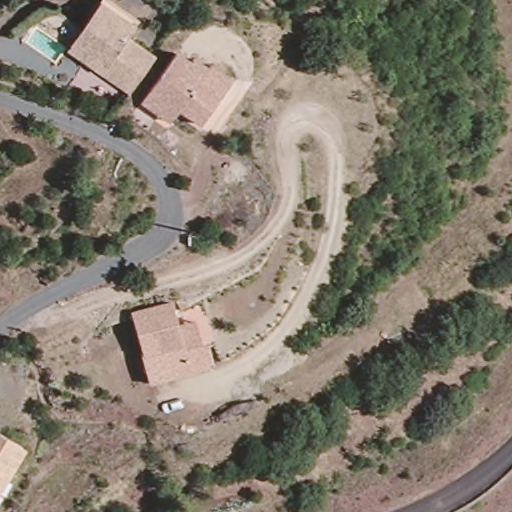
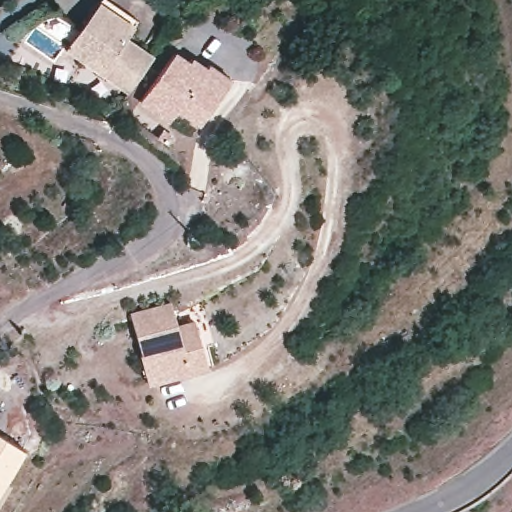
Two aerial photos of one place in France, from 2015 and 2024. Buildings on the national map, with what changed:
unchanged [(102,0),(103,0),(134,24),(121,42),(147,61),(123,96),(100,79),(78,64),(63,51),(102,0)]
unchanged [(156,116),(140,105),(175,56),(190,66),(192,61),(193,62),(207,72),(210,68),(232,83),(222,96),(200,128),(178,113),(175,117),(170,125),(156,116)]
unchanged [(190,325),(206,370),(190,376),(149,391),(138,361),(140,360),(129,331),(168,317),(173,331),(190,325)]
unchanged [(0,482),(0,440),(16,449),(0,482)]
unchanged [(227,510),(229,512),(223,512),(227,510)]

